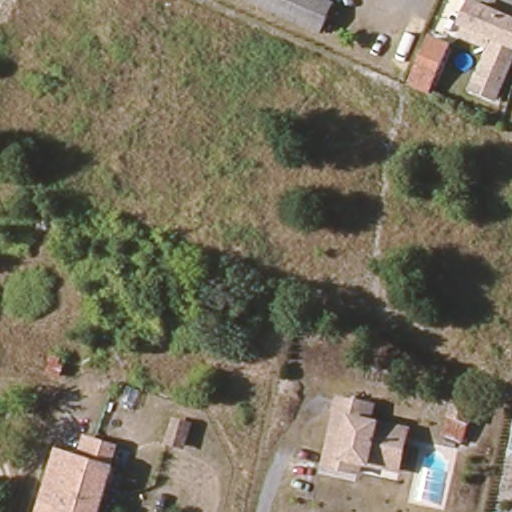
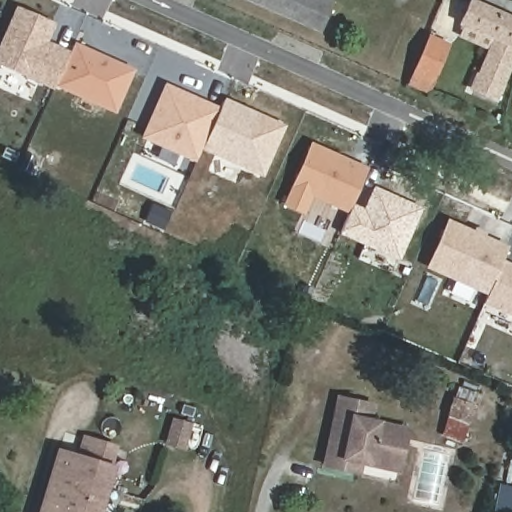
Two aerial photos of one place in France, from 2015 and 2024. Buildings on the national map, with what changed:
unchanged [(317,30),(248,0),(323,0),(330,3),(317,30)]
unchanged [(473,1),(512,18),(512,65),(497,98),(475,88),(492,49),(461,34),(465,24),(463,23),(473,1)]
new [(55,23),(48,41),(70,51),(74,41),(135,68),(115,114),(54,86),(50,91),(0,66),(0,40),(15,5),(55,23)]
unchanged [(430,87),(411,78),(431,31),(451,39),(430,87)]
new [(196,158),(140,138),(165,84),(220,107),(224,97),(243,105),(241,108),(286,125),(263,177),(200,150),(196,158)]
new [(310,141),(368,167),(352,204),(362,208),(372,186),(422,207),(398,261),(340,235),(347,211),(311,199),(305,215),(282,205),(310,141)]
new [(512,264),(512,315),(482,303),(485,295),(472,289),(466,301),(448,293),(454,281),(424,268),(446,218),(508,245),(501,259),(512,264)]
demolished [(107,361),(106,366),(102,380),(100,385),(80,378),(81,374),(87,355),(94,332),(115,339),(107,361)]
demolished [(126,375),(156,386),(149,417),(115,404),(126,375)]
demolished [(99,399),(85,396),(86,386),(100,388),(99,399)]
unchanged [(465,447),(444,438),(460,391),(480,399),(465,447)]
unchanged [(353,470),(326,464),(341,397),(375,404),(371,420),(400,426),(410,428),(406,446),(400,470),(363,461),(361,471),(353,470)]
unchanged [(182,450),(164,444),(174,410),(192,415),(182,450)]
unchanged [(96,512),(37,512),(56,450),(85,459),(91,439),(114,445),(107,465),(110,466),(96,512)]

